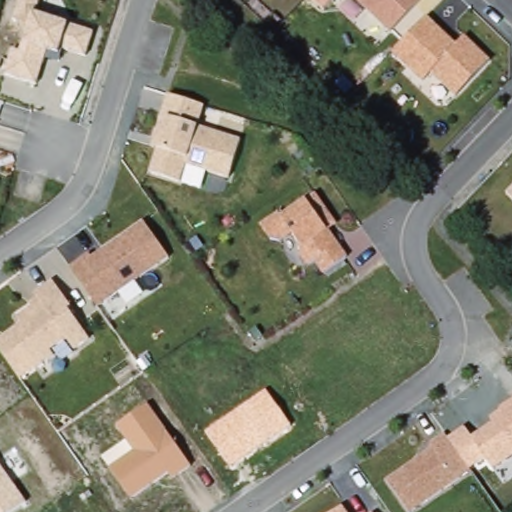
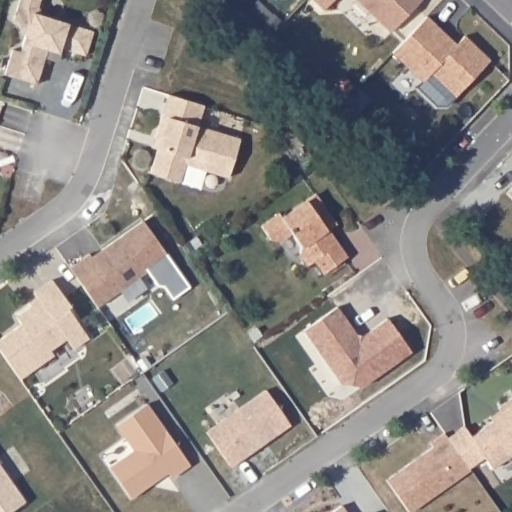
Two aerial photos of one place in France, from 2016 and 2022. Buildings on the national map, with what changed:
unchanged [(19,0),(41,0),(36,15),(67,24),(93,34),(87,56),(61,49),(60,55),(46,51),(39,81),(38,82),(6,72),(13,49),(21,51),(24,37),(18,22),(13,21),(19,0)]
unchanged [(392,32),(356,0),(422,0),(392,32)]
unchanged [(459,46),(468,37),(493,60),(459,100),(433,75),(424,84),(396,55),(429,17),(459,46)]
unchanged [(205,105),(199,127),(244,138),(234,176),(188,162),(183,183),(153,173),(169,121),(170,97),(205,105)]
unchanged [(504,198),(512,189),(512,205),(504,198)]
unchanged [(340,223),(330,229),(351,257),(325,277),(315,263),(309,267),(293,237),(275,246),(262,224),(281,212),(285,217),(315,192),(340,223)]
unchanged [(99,305),(74,270),(141,222),(168,258),(99,305)]
unchanged [(73,312),(93,340),(78,351),(69,339),(51,351),(55,357),(21,380),(0,346),(0,342),(24,324),(16,312),(37,300),(34,294),(54,280),(75,309),(73,312)]
new [(332,303),(352,331),(359,332),(383,314),(407,347),(357,382),(337,380),(299,327),(332,303)]
unchanged [(207,433),(267,391),(290,426),(230,466),(207,433)]
unchanged [(466,429),(472,437),(492,423),(487,416),(512,399),(512,458),(494,471),(485,458),(469,471),(449,442),(466,429)]
unchanged [(130,500),(109,471),(134,452),(117,427),(148,405),(187,463),(130,500)]
unchanged [(407,512),(383,483),(445,436),(469,471),(411,512),(407,512)]
unchanged [(10,512),(0,512),(0,464),(25,502),(10,512)]
unchanged [(334,512),(345,504),(350,512),(334,512)]
unchanged [(377,512),(375,512),(376,511),(377,512)]

